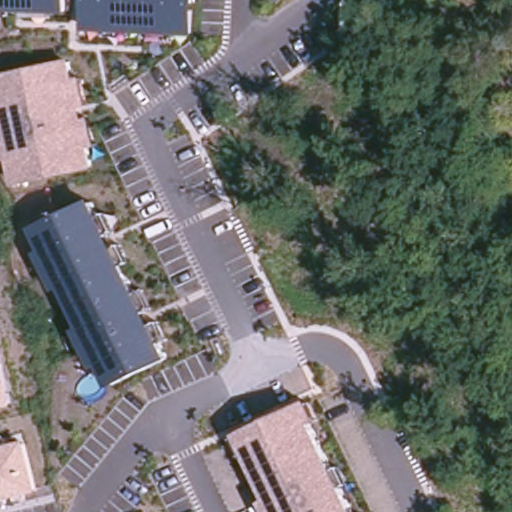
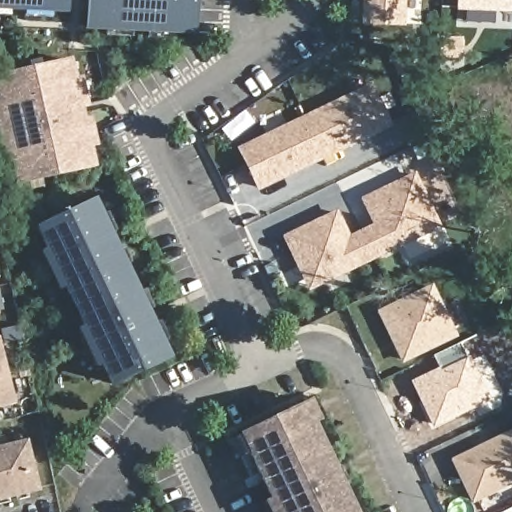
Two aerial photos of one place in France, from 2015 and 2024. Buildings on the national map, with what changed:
unchanged [(69,0),(69,12),(0,9),(0,0),(69,0)]
unchanged [(89,0),(197,0),(196,33),(87,27),(89,0)]
new [(361,22),(361,0),(398,0),(397,22),(361,22)]
new [(463,64),(440,63),(440,33),(465,33),(463,64)]
unchanged [(0,152),(0,73),(72,58),(76,77),(83,75),(90,104),(81,106),(85,118),(92,117),(99,145),(91,147),(95,167),(16,185),(10,156),(2,158),(0,152)]
new [(252,183),(235,147),(365,84),(382,120),(252,183)]
new [(297,262),(286,237),(333,213),(346,239),(375,224),(362,199),(411,175),(423,202),(434,224),(418,232),(325,278),(309,285),(297,262)]
unchanged [(172,356),(112,386),(101,364),(93,368),(75,330),(83,327),(64,287),(57,290),(39,251),(46,250),(34,226),(96,197),(172,356)]
unchanged [(512,240),(512,245),(500,248),(487,221),(501,215),(512,240)]
new [(431,288),(453,335),(402,360),(380,313),(431,288)]
unchanged [(17,404),(0,408),(0,339),(1,339),(17,404)]
new [(437,368),(432,355),(458,343),(465,357),(468,356),(490,401),(432,428),(410,381),(437,368)]
unchanged [(320,421),(314,424),(356,512),(268,512),(263,502),(269,499),(237,433),(310,399),(320,421)]
new [(512,430),(512,476),(468,498),(461,481),(458,476),(450,460),(512,430)]
unchanged [(41,492),(0,502),(0,449),(30,441),(41,492)]

